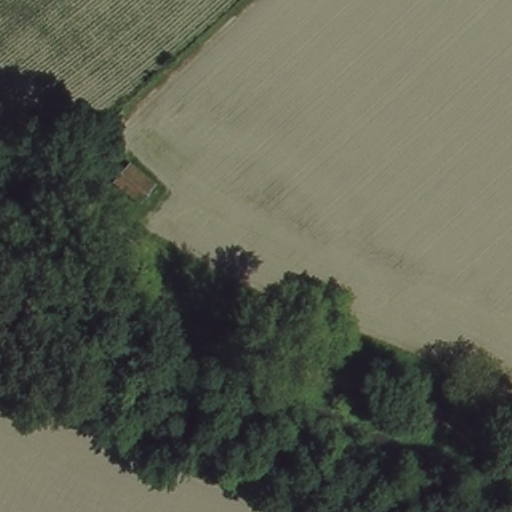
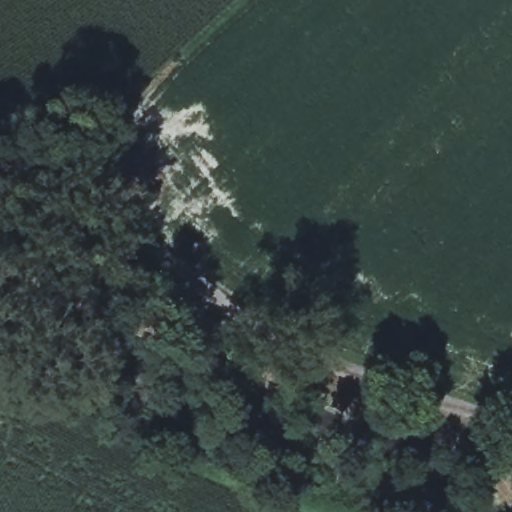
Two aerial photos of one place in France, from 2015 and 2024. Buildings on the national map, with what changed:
unchanged [(153,181),(142,203),(116,185),(129,166),(153,181)]

